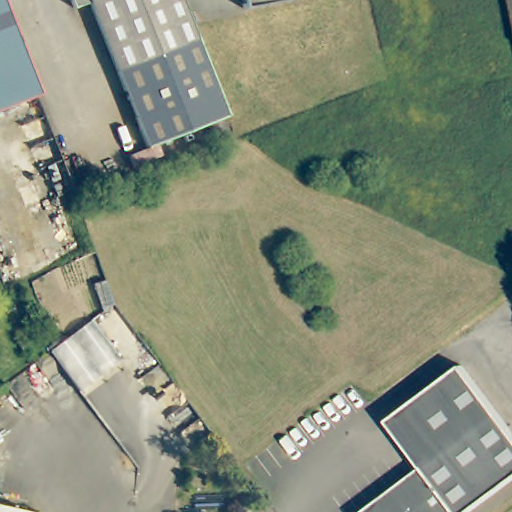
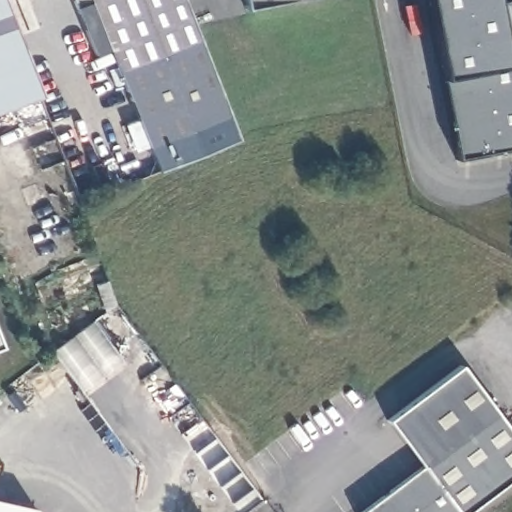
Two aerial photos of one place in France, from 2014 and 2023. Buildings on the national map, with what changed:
unchanged [(0,108),(0,0),(2,0),(39,94),(0,108)]
unchanged [(76,5),(74,0),(87,0),(76,5)]
unchanged [(229,111),(148,143),(92,0),(185,0),(229,111)]
unchanged [(245,6),(243,0),(273,0),(245,6)]
new [(440,75),(426,0),(492,0),(493,6),(512,1),(512,44),(500,47),(502,63),(512,60),(512,148),(457,160),(440,75)]
new [(0,348),(0,346),(1,348),(0,348)]
unchanged [(388,417),(462,361),(512,427),(512,475),(464,512),(359,512),(423,464),(388,417)]
unchanged [(0,512),(0,506),(25,512),(0,512)]

